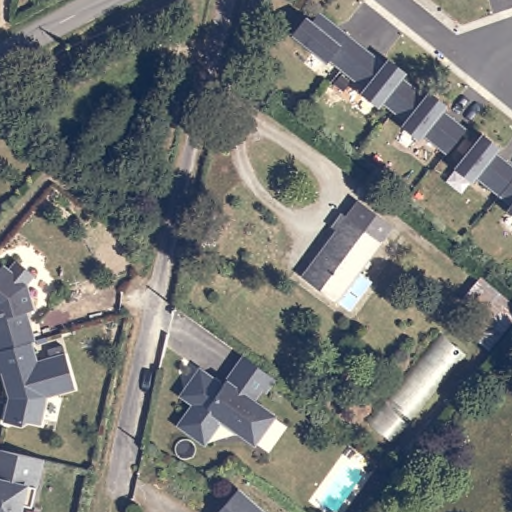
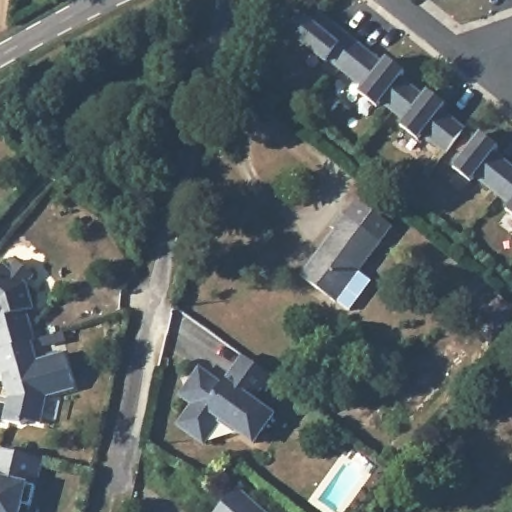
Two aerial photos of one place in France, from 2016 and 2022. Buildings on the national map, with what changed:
unchanged [(352,54),(351,56),(341,68),(329,59),(326,61),(296,37),(292,34),(305,17),(309,20),(311,22),(319,12),(360,44),(352,54)]
unchanged [(393,111),(381,101),(378,104),(377,106),(360,93),(362,91),(364,87),(341,68),(351,56),(352,54),(360,44),(383,64),(388,58),(405,72),(400,77),(412,87),(393,111)]
unchanged [(446,153),(422,134),(418,139),(401,126),(405,120),(393,111),(412,87),(425,96),(427,93),(429,91),(446,104),(441,110),(465,129),(446,153)]
unchanged [(499,195),(475,176),(471,181),(454,168),(482,133),(498,146),(494,152),(512,167),(512,178),(499,195)]
unchanged [(506,210),(511,204),(499,195),(512,178),(512,215),(506,210)]
unchanged [(349,308),(336,299),(335,301),(300,277),(300,274),(333,229),(330,227),(329,226),(339,212),(344,215),(356,200),(391,225),(357,270),(370,279),(349,308)]
unchanged [(16,259),(34,274),(26,283),(33,308),(26,310),(34,340),(31,341),(0,350),(0,268),(3,264),(9,269),(16,259)]
unchanged [(484,313),(466,298),(484,277),(512,302),(512,322),(492,347),(470,329),(484,313)]
unchanged [(36,361),(65,353),(75,388),(46,396),(40,423),(28,420),(21,424),(4,420),(9,397),(2,372),(0,372),(0,350),(31,341),(36,361)]
unchanged [(278,378),(269,389),(265,386),(256,399),(277,414),(257,442),(243,432),(238,433),(222,422),(207,442),(181,424),(196,403),(184,394),(203,368),(226,384),(247,355),(278,378)]
unchanged [(42,453),(31,501),(21,499),(18,512),(0,512),(0,444),(25,449),(42,453)]
unchanged [(274,512),(218,512),(243,484),(274,512)]

